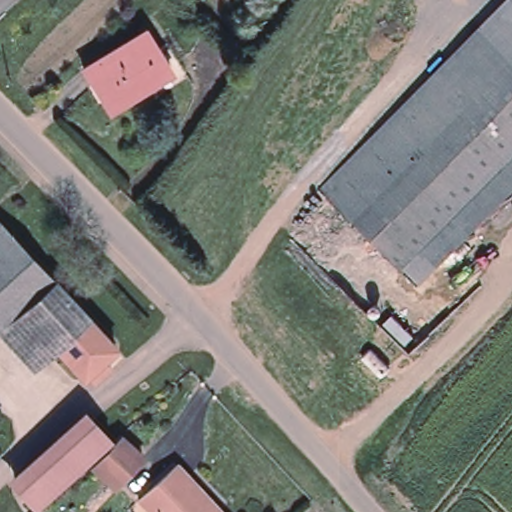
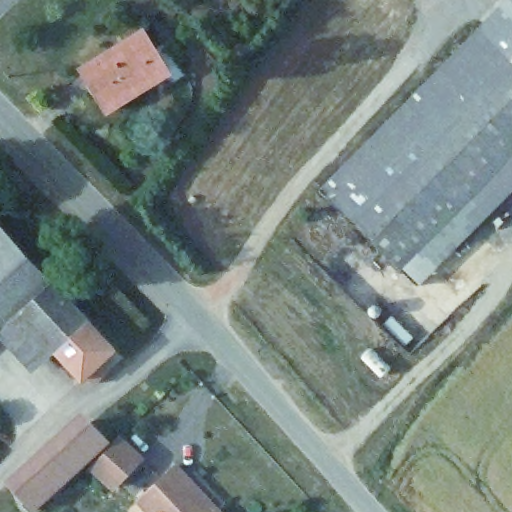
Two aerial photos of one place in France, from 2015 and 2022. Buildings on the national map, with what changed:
unchanged [(475,21),(496,0),(512,0),(512,56),(503,47),(475,21)]
unchanged [(503,47),(347,207),(322,182),(475,21),(503,47)]
unchanged [(147,24),(174,63),(112,103),(87,63),(147,24)]
unchanged [(512,56),(512,181),(417,277),(347,207),(503,47),(512,56)]
unchanged [(12,312),(0,324),(0,222),(50,276),(12,312)]
unchanged [(50,276),(113,344),(102,353),(108,359),(97,369),(92,364),(82,373),(54,346),(47,352),(12,312),(50,276)]
unchanged [(47,352),(30,367),(0,335),(0,324),(12,312),(47,352)]
unchanged [(110,445),(32,509),(5,475),(84,411),(110,445)]
unchanged [(143,454),(115,486),(91,469),(121,435),(143,454)]
unchanged [(179,461),(218,503),(227,512),(153,512),(138,496),(179,461)]

